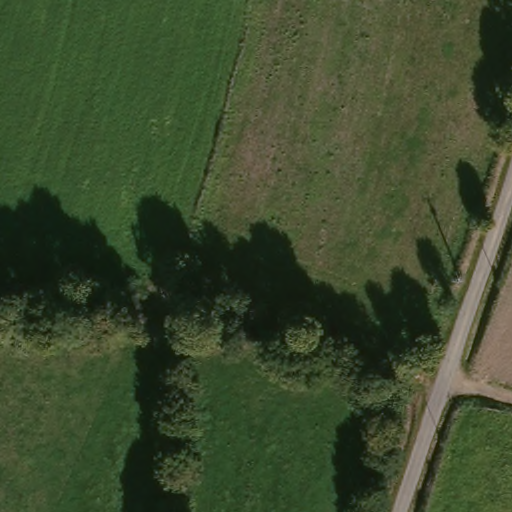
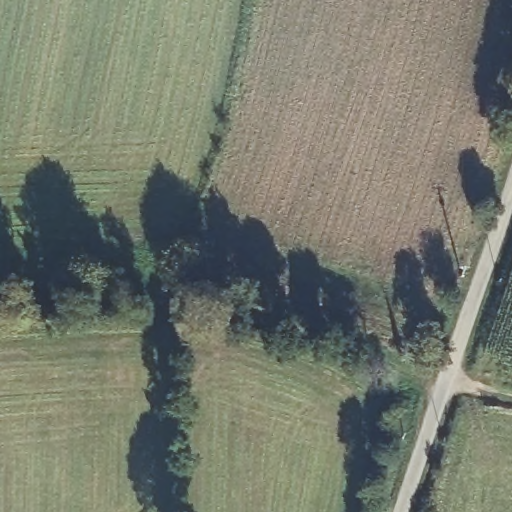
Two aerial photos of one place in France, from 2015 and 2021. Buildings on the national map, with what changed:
[]

